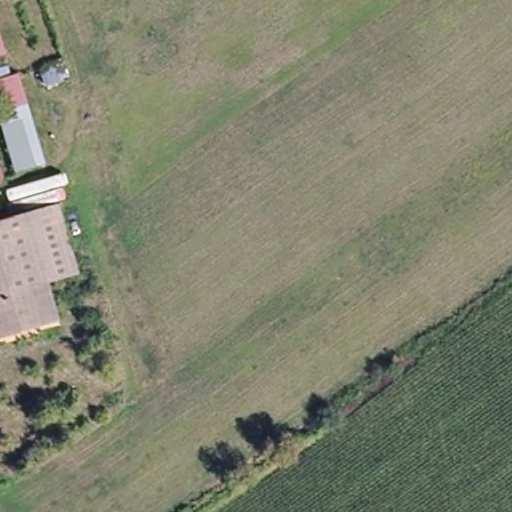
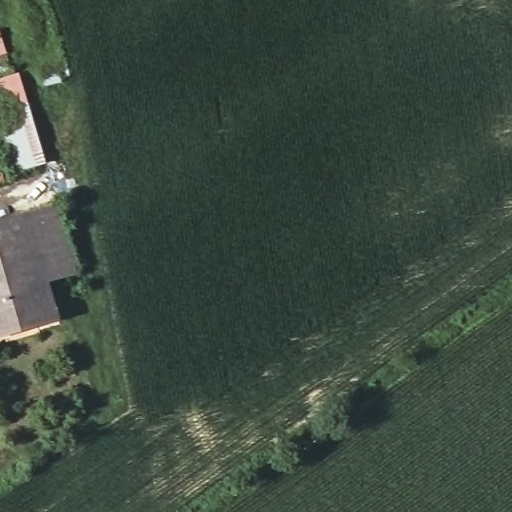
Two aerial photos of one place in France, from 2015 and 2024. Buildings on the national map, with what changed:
unchanged [(0,66),(0,32),(2,31),(13,65),(0,66)]
unchanged [(10,176),(3,152),(0,139),(0,81),(23,74),(48,165),(10,176)]
unchanged [(3,152),(10,176),(0,179),(0,153),(3,152)]
unchanged [(60,212),(78,282),(47,290),(56,325),(27,332),(26,325),(0,332),(2,339),(0,340),(0,227),(60,212)]

